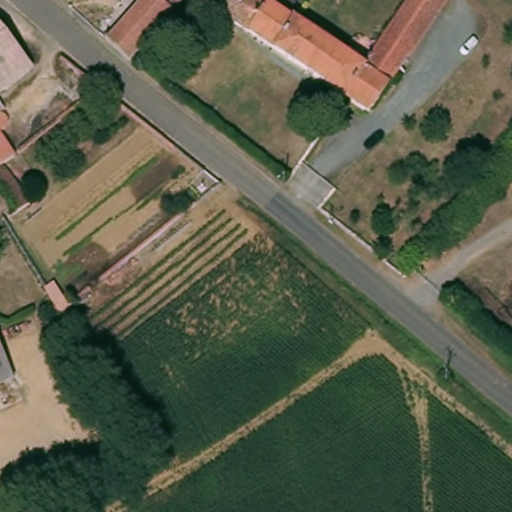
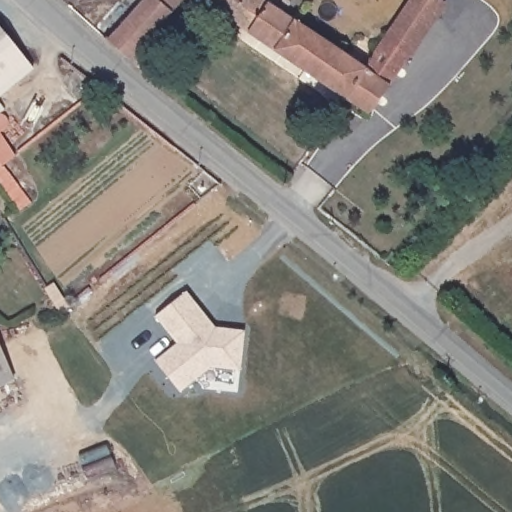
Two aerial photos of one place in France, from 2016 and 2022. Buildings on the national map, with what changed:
unchanged [(116,0),(183,0),(186,3),(143,52),(103,15),(116,0)]
unchanged [(183,0),(189,0),(186,3),(183,0)]
unchanged [(355,46),(362,34),(381,47),(398,22),(422,39),(379,106),(373,109),(240,20),(210,0),(273,0),(351,52),(355,46)]
unchanged [(398,22),(413,0),(447,0),(422,39),(398,22)]
unchanged [(10,9),(33,37),(19,49),(31,62),(0,88),(0,16),(10,9)]
unchanged [(2,105),(0,107),(0,102),(2,105)]
unchanged [(0,108),(2,108),(4,109),(7,111),(8,112),(9,116),(9,117),(8,120),(7,123),(6,125),(4,125),(3,125),(2,125),(0,125),(0,108)]
unchanged [(11,147),(13,150),(2,159),(23,187),(30,197),(17,207),(15,206),(0,186),(0,130),(11,147)]
new [(216,327),(244,330),(239,370),(210,367),(180,391),(155,361),(177,343),(155,315),(187,291),(216,327)]
unchanged [(12,378),(0,383),(0,352),(12,378)]

